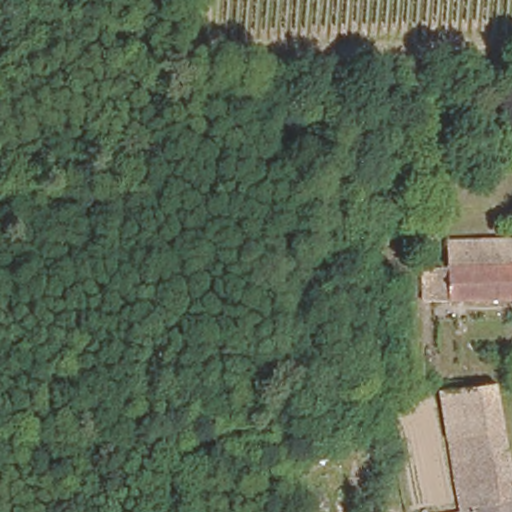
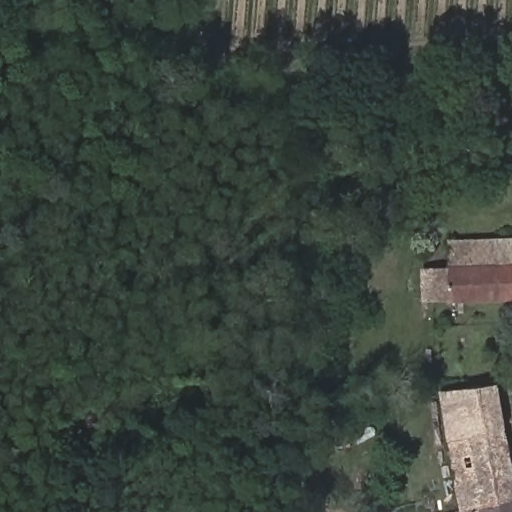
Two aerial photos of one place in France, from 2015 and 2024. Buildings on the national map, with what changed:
unchanged [(447,268),(447,244),(512,241),(512,301),(423,305),(423,269),(447,268)]
unchanged [(442,397),(493,386),(512,479),(512,503),(465,512),(442,397)]
unchanged [(512,512),(465,512),(512,503),(512,512)]

